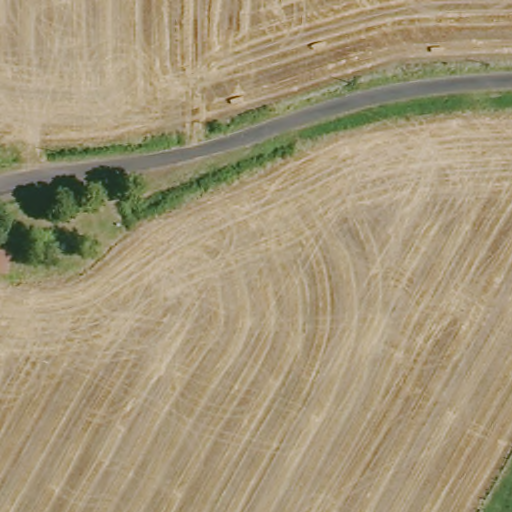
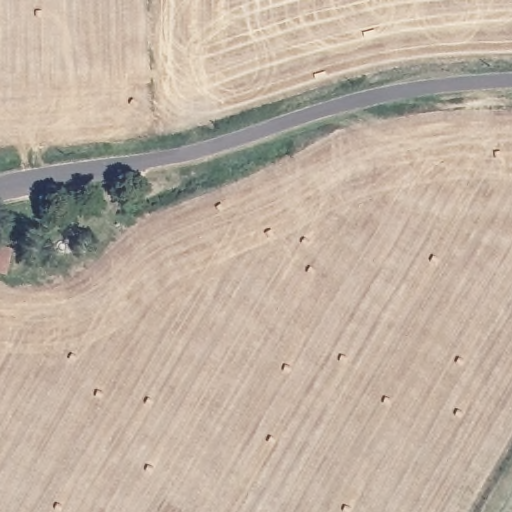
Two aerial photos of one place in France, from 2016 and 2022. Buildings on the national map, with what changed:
unchanged [(8,242),(8,266),(0,266),(0,242),(8,242)]

